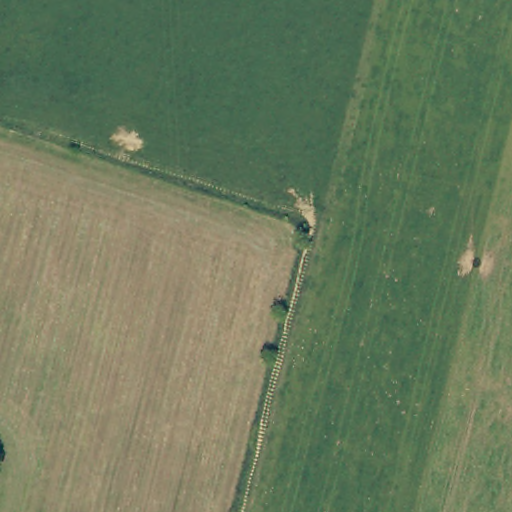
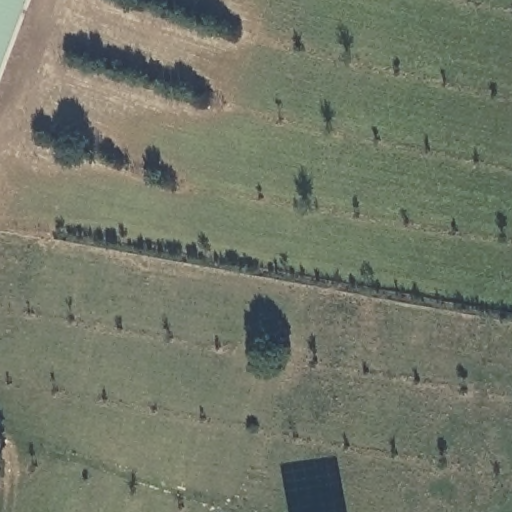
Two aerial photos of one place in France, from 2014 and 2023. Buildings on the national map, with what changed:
new [(0,0),(28,0),(0,76),(0,0)]

